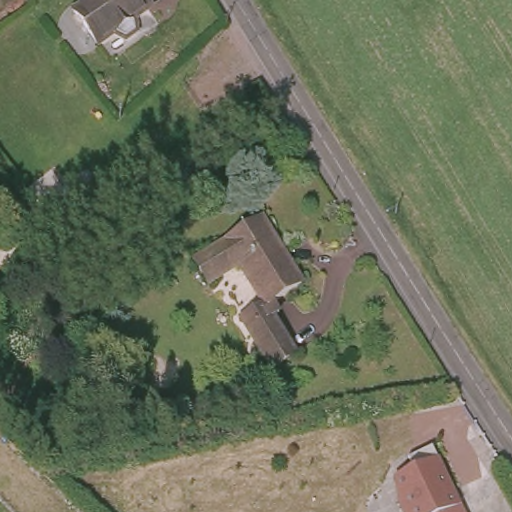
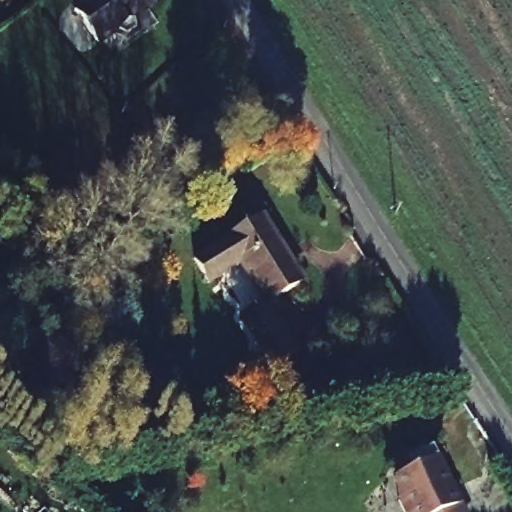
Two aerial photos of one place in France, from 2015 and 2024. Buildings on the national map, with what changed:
unchanged [(136,0),(140,7),(129,15),(130,30),(115,40),(101,35),(90,42),(65,7),(76,0),(136,0)]
unchanged [(265,222),(305,287),(270,309),(300,359),(273,376),(242,327),(265,312),(239,271),(210,288),(196,266),(265,222)]
unchanged [(397,500),(405,497),(397,475),(416,468),(412,455),(441,446),(456,493),(452,495),(458,512),(402,512),(397,500)]

